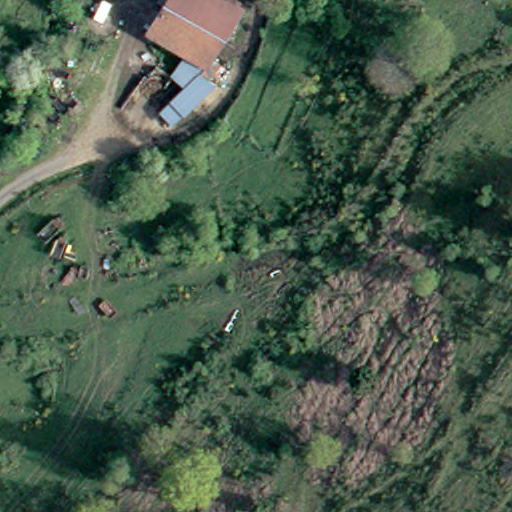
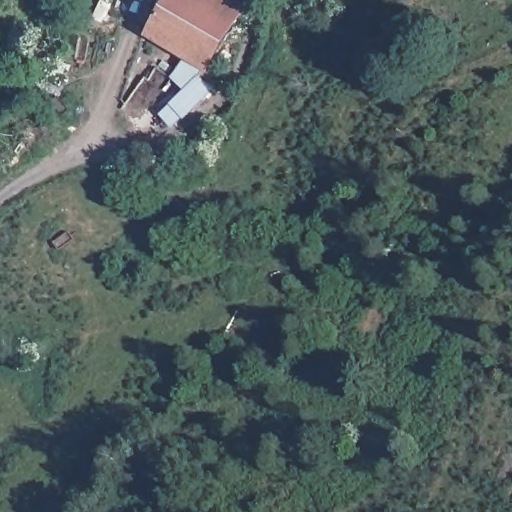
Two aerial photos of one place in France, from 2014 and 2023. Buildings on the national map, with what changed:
unchanged [(149,32),(166,5),(161,1),(161,0),(244,0),(204,67),(149,32)]

